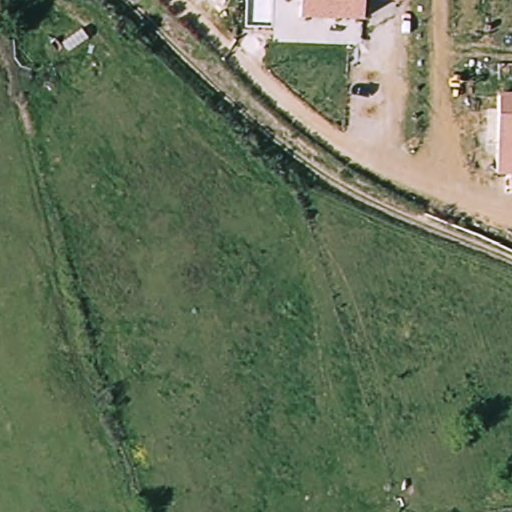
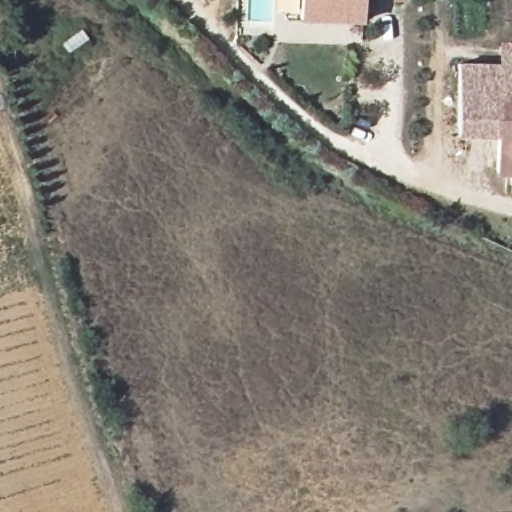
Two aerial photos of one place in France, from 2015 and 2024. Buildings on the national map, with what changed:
unchanged [(299,19),(300,0),(362,0),(361,21),(299,19)]
new [(459,62),(498,63),(499,41),(512,41),(512,93),(498,92),(498,137),(457,136),(459,62)]
unchanged [(512,93),(512,174),(497,174),(498,92),(512,93)]

